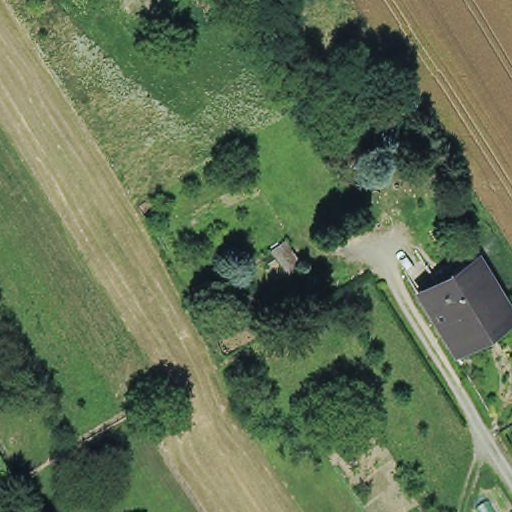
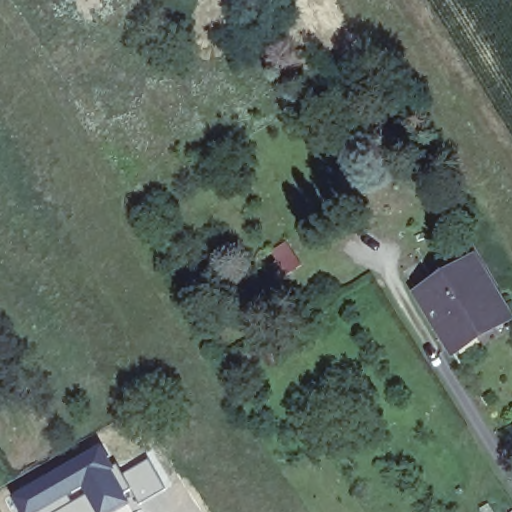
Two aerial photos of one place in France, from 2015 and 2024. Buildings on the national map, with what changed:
unchanged [(422,301),(481,264),(512,313),(512,323),(457,358),(422,301)]
new [(131,503),(117,512),(96,512),(82,490),(42,512),(19,512),(10,494),(101,443),(131,503)]
new [(149,457),(168,488),(140,505),(122,473),(149,457)]
new [(96,512),(42,512),(82,490),(96,512)]

